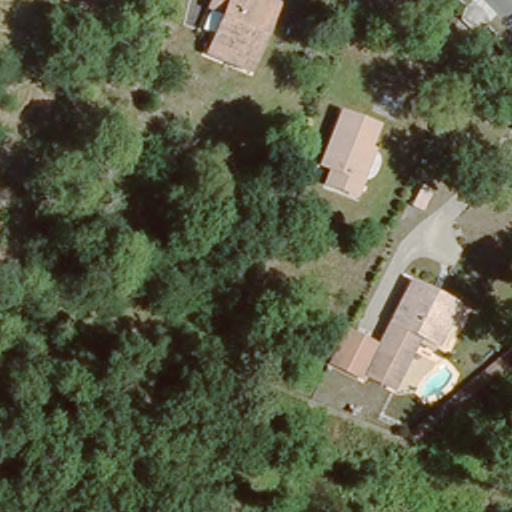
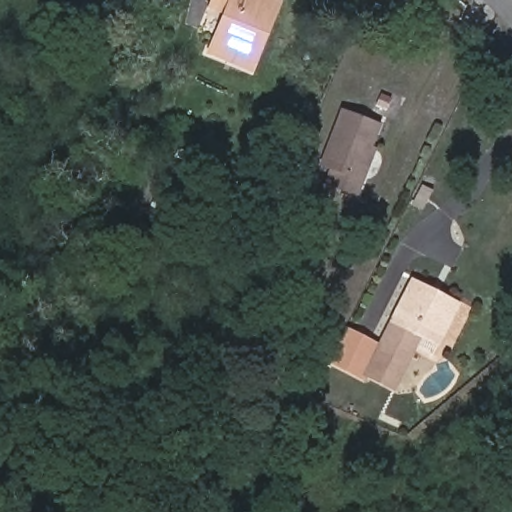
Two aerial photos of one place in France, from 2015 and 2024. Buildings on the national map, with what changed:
unchanged [(210,52),(225,19),(209,11),(214,0),(271,0),(281,4),(267,37),(251,71),(210,52)]
unchanged [(362,180),(356,194),(328,181),(334,167),(323,162),(345,109),(377,124),(368,146),(375,149),(362,180)]
unchanged [(396,386),(366,371),(364,377),(359,375),(373,340),(376,341),(409,275),(438,290),(419,335),(396,386)]
unchanged [(458,300),(436,343),(419,335),(438,290),(458,300)]
unchanged [(329,360),(345,327),(373,340),(359,375),(329,360)]

